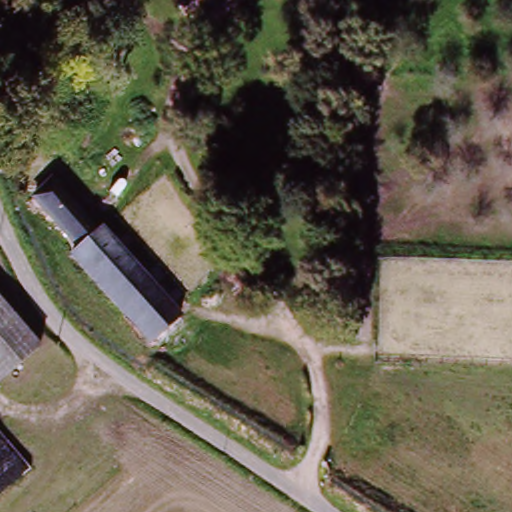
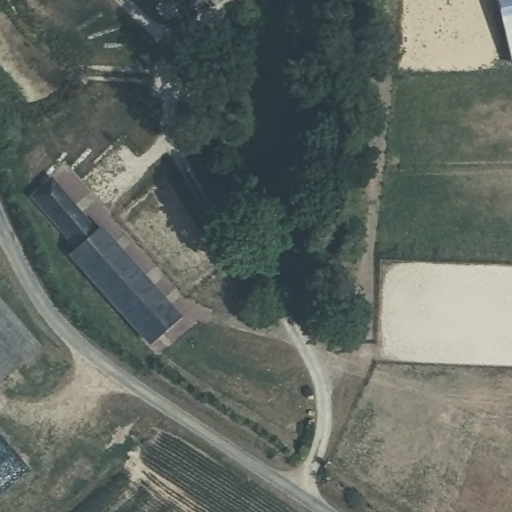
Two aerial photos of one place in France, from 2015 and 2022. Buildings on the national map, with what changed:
unchanged [(183,0),(203,0),(189,9),(183,0)]
new [(512,0),(512,68),(496,0),(512,0)]
unchanged [(109,65),(103,54),(131,34),(139,45),(109,65)]
unchanged [(34,198),(53,181),(98,232),(79,248),(34,198)]
unchanged [(103,228),(181,317),(151,343),(71,255),(79,248),(98,232),(103,228)]
unchanged [(0,385),(0,305),(39,351),(0,385)]

